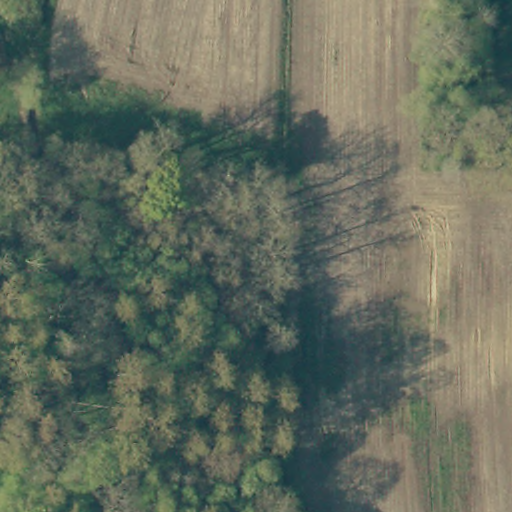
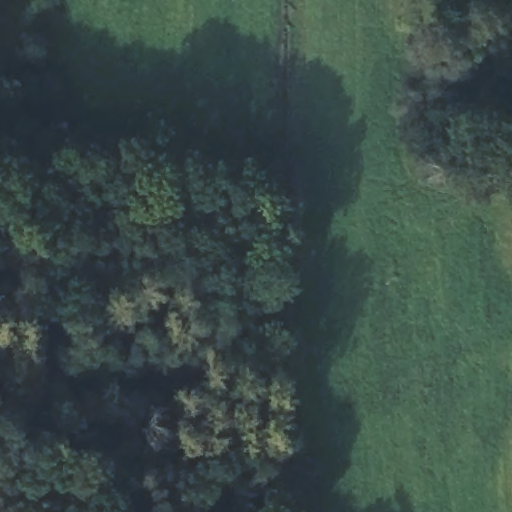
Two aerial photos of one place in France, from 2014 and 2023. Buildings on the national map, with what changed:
[]

